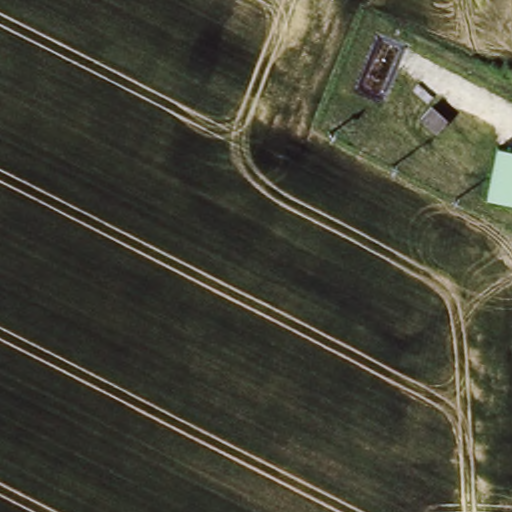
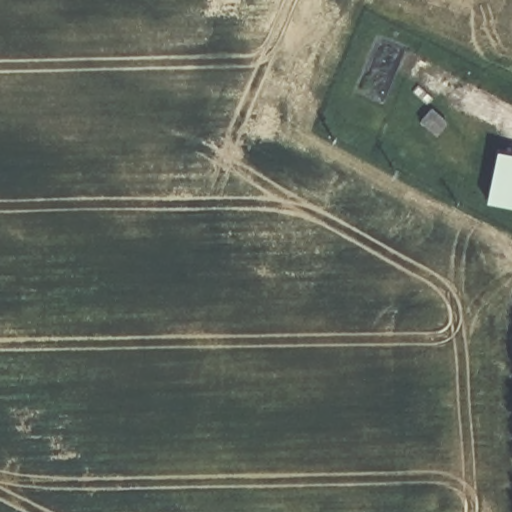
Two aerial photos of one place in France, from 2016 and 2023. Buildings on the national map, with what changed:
unchanged [(437,104),(457,124),(439,139),(418,119),(437,104)]
unchanged [(512,204),(486,198),(497,147),(512,150),(512,204)]

